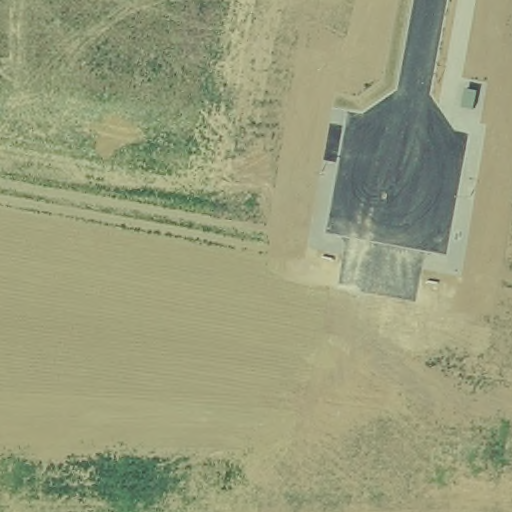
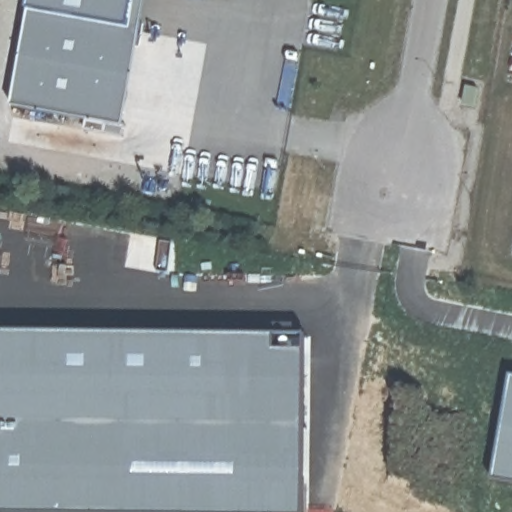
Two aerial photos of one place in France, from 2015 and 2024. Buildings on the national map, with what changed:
new [(37,16),(139,34),(145,0),(155,0),(132,131),(130,141),(91,134),(93,124),(20,111),(37,16)]
new [(145,0),(139,34),(37,16),(39,0),(145,0)]
new [(309,335),(309,512),(0,512),(0,334),(309,335)]
new [(512,381),(512,488),(497,486),(512,381)]

